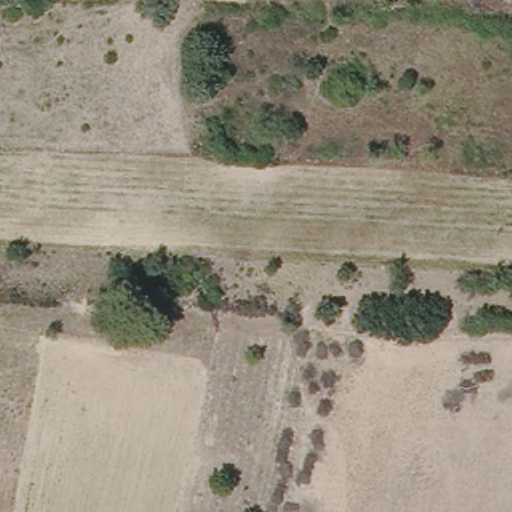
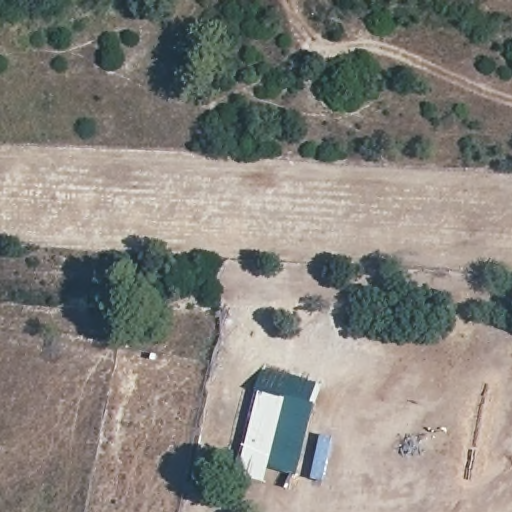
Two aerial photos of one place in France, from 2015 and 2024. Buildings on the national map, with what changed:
new [(301,472),(268,465),(263,486),(237,479),(261,367),(325,381),(301,472)]

